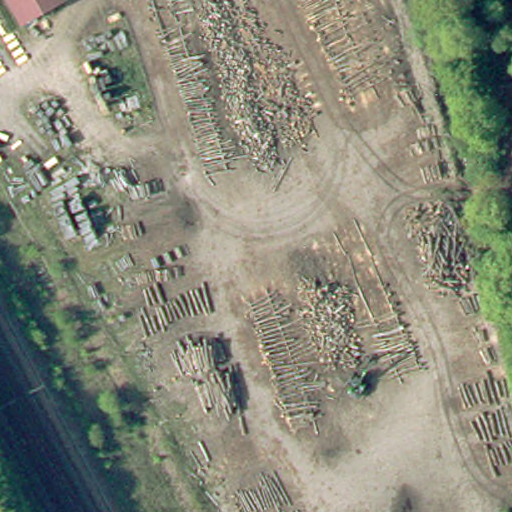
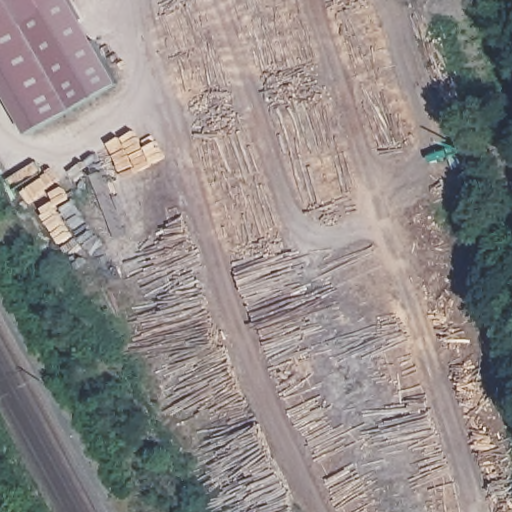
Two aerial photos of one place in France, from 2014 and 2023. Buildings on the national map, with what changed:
new [(29,28),(74,2),(123,84),(33,138),(0,78),(0,0),(13,0),(29,28)]
unchanged [(74,2),(29,28),(13,0),(72,0),(74,2)]

